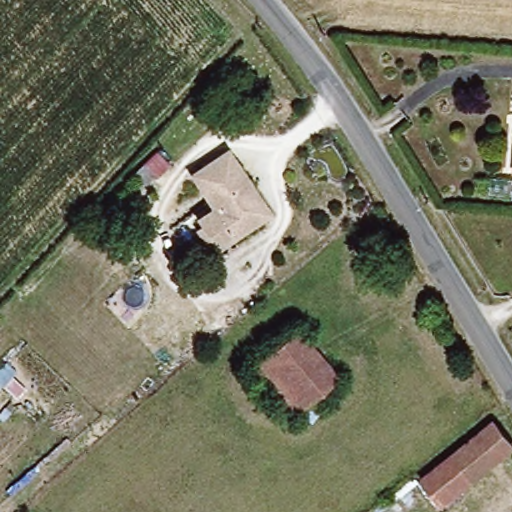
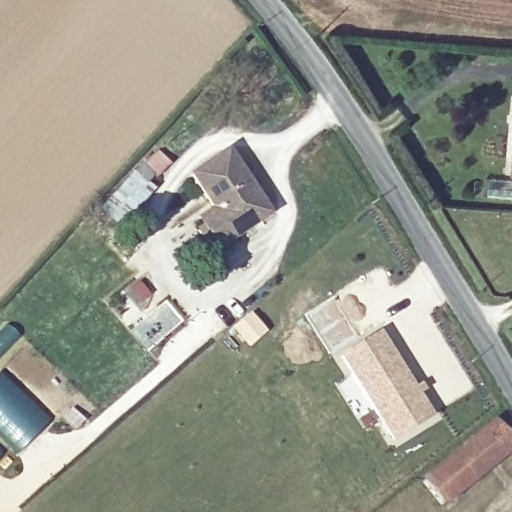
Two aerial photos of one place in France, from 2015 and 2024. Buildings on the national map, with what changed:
unchanged [(229,150),(276,210),(225,248),(205,223),(220,210),(195,175),(229,150)]
new [(170,163),(150,186),(155,190),(120,228),(101,212),(156,151),(170,163)]
unchanged [(486,201),(512,201),(512,217),(486,216),(486,201)]
new [(22,335),(0,357),(0,330),(9,322),(22,335)]
new [(380,329),(435,415),(393,442),(376,420),(338,357),(380,329)]
demolished [(251,368),(302,330),(340,381),(288,419),(251,368)]
new [(52,420),(17,454),(0,437),(0,372),(2,370),(52,420)]
unchanged [(500,426),(512,441),(512,450),(445,503),(428,482),(500,426)]

